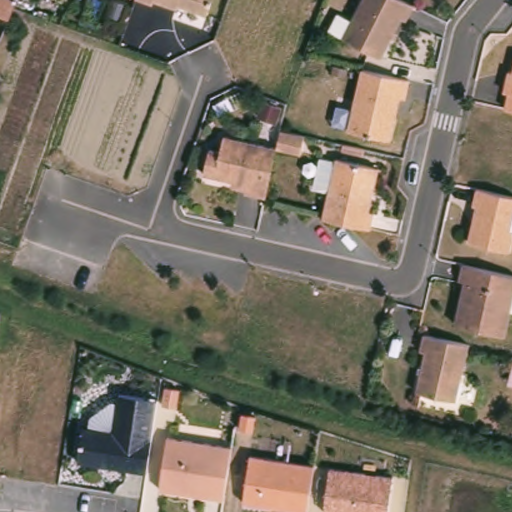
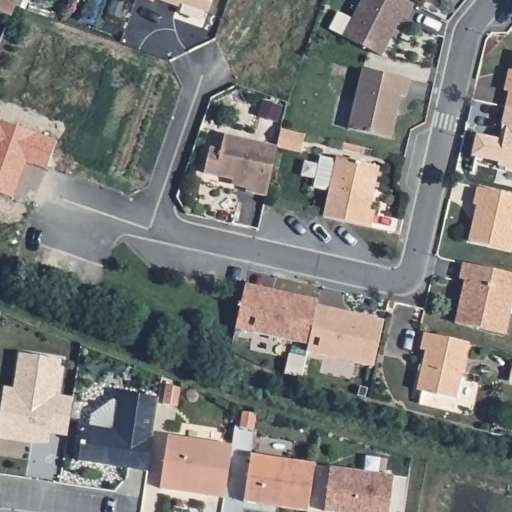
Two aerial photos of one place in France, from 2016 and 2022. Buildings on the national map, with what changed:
unchanged [(15,7),(11,17),(0,13),(0,0),(19,0),(15,7)]
unchanged [(110,14),(115,0),(122,0),(127,2),(121,18),(110,14)]
unchanged [(154,1),(151,0),(154,0),(154,1)]
unchanged [(204,26),(175,16),(179,6),(161,0),(213,0),(204,26)]
unchanged [(413,5),(406,20),(402,17),(382,57),(343,37),(362,0),(403,0),(413,5)]
unchanged [(348,129),(362,69),(410,80),(405,98),(400,96),(391,139),(348,129)]
unchanged [(505,108),(512,79),(512,109),(505,108)]
unchanged [(258,115),(263,101),(280,107),(275,121),(258,115)]
unchanged [(271,172),(265,196),(245,192),(247,184),(204,174),(210,148),(221,151),(225,136),(276,147),(271,172)]
unchanged [(340,222),(318,217),(324,191),(310,188),(316,159),(330,162),(331,158),(374,167),(364,211),(370,212),(365,228),(340,222)]
unchanged [(508,231),(512,232),(507,251),(467,242),(471,223),(474,223),(477,207),(472,206),(475,189),(512,198),(512,216),(508,231)]
unchanged [(455,323),(465,281),(460,280),(463,264),(510,274),(512,275),(512,303),(505,335),(455,323)]
new [(242,294),(245,284),(272,290),(318,301),(316,306),(354,314),(383,321),(373,367),(306,352),(308,345),(235,328),(242,294)]
unchanged [(0,320),(0,311),(1,311),(0,320)]
unchanged [(417,391),(426,351),(420,350),(425,334),(430,335),(469,344),(456,400),(417,391)]
new [(6,440),(0,440),(0,418),(2,402),(4,391),(14,392),(20,355),(59,362),(54,398),(71,401),(66,437),(48,434),(46,444),(31,444),(6,440)]
unchanged [(511,379),(512,375),(512,379),(511,379)]
unchanged [(76,460),(83,426),(88,427),(90,416),(115,398),(120,400),(122,391),(158,397),(147,471),(76,460)]
unchanged [(160,489),(168,435),(232,445),(225,500),(160,489)]
unchanged [(244,501),(251,454),(313,463),(306,512),(244,501)]
unchanged [(389,512),(325,512),(325,467),(392,475),(389,512)]

